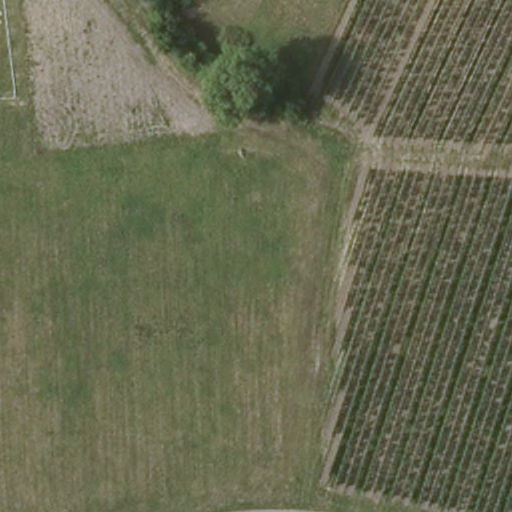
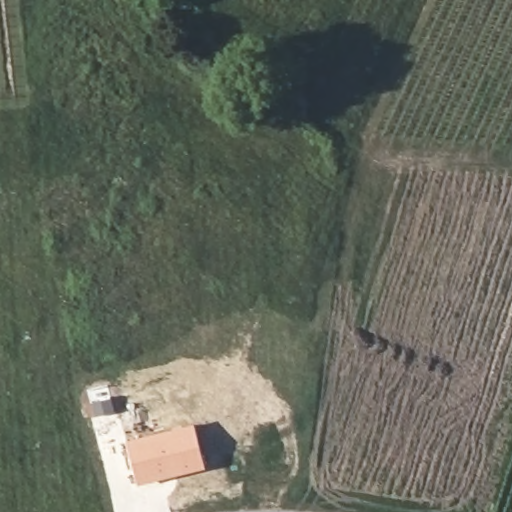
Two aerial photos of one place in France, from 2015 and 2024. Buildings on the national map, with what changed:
new [(205,469),(138,487),(125,442),(195,424),(205,469)]

